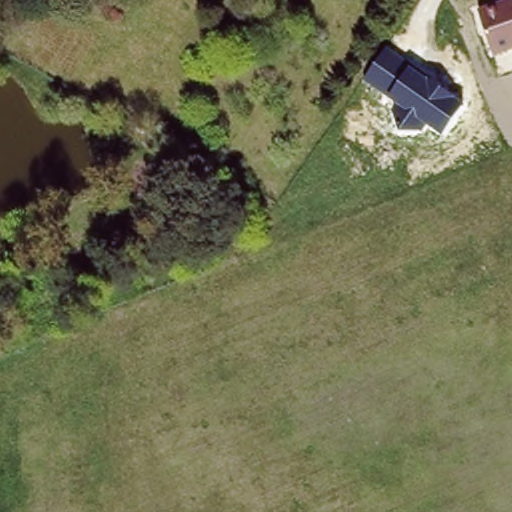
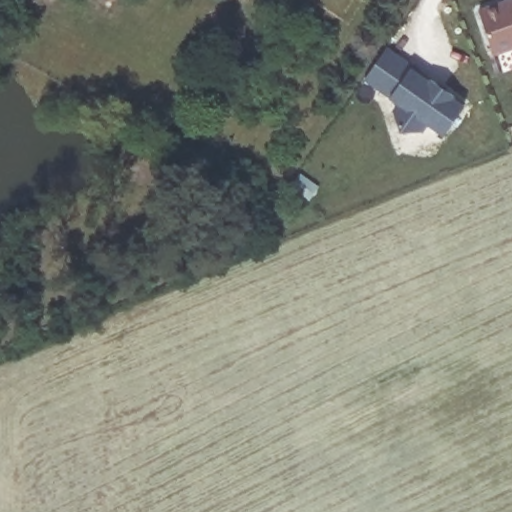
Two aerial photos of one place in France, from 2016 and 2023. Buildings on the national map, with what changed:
unchanged [(478,11),(511,0),(512,0),(512,50),(493,56),(478,11)]
unchanged [(429,126),(425,132),(400,134),(392,114),(397,105),(363,82),(383,52),(465,106),(444,136),(429,126)]

